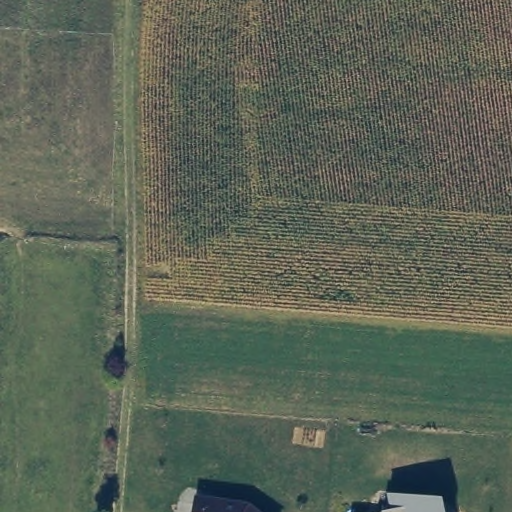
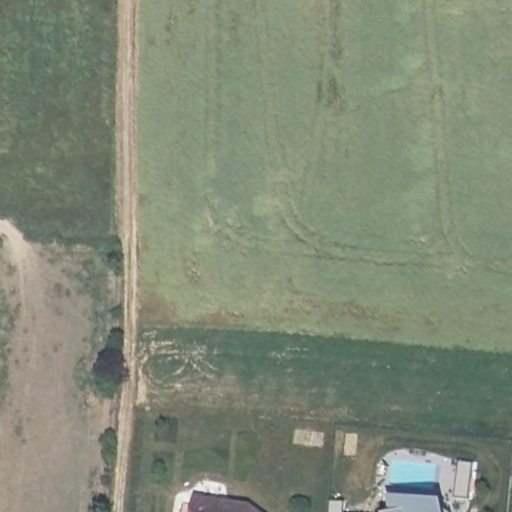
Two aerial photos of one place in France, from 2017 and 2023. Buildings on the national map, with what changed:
unchanged [(389,512),(385,496),(440,502),(443,512),(389,512)]
unchanged [(252,507),(257,512),(194,512),(195,500),(252,507)]

